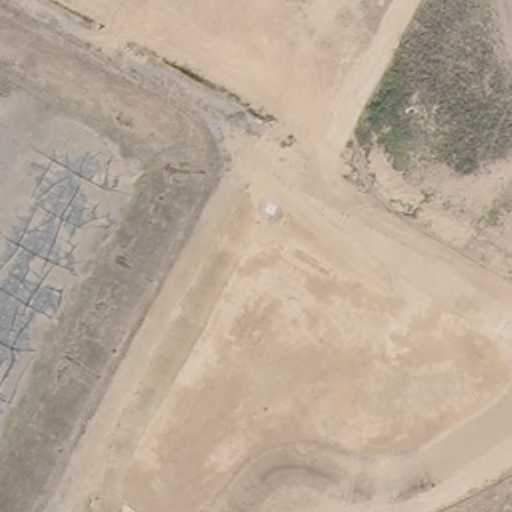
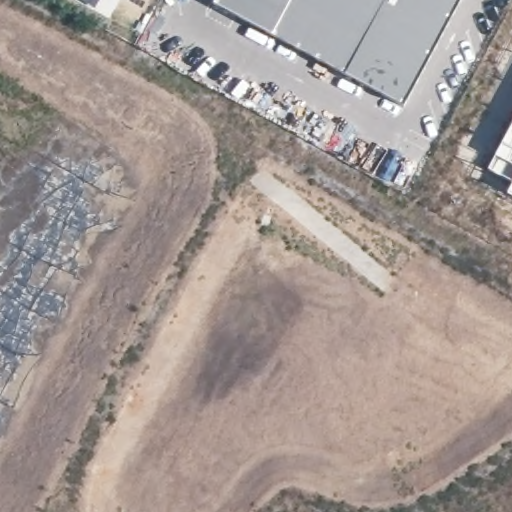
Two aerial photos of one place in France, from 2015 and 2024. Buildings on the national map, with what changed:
new [(404,106),(214,3),(216,0),(461,0),(404,106)]
new [(489,169),(512,126),(512,181),(489,169)]
new [(507,194),(512,186),(512,197),(507,194)]

